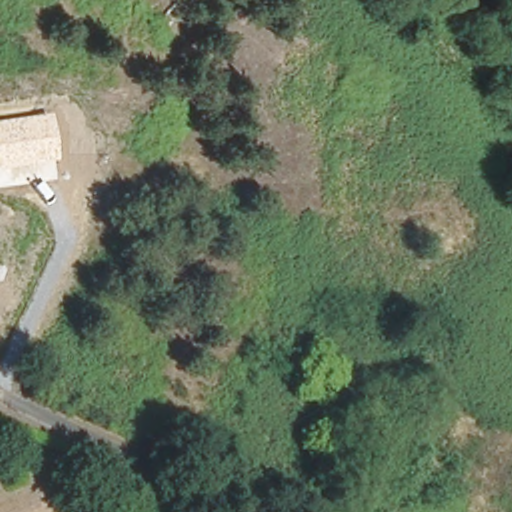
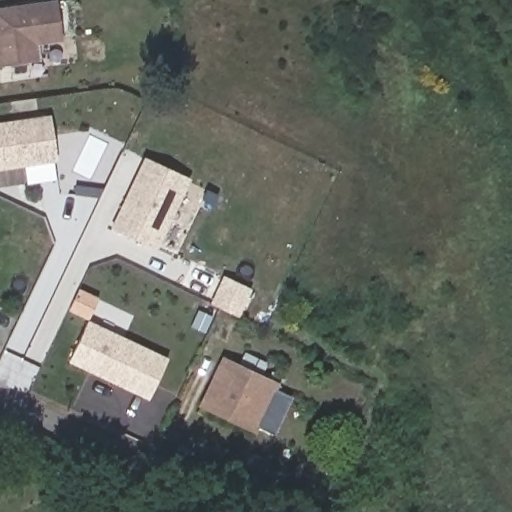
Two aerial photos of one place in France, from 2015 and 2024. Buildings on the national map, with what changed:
new [(0,7),(52,0),(56,0),(61,40),(35,44),(38,61),(0,66),(0,7)]
unchanged [(0,170),(0,122),(51,115),(56,162),(0,170)]
new [(110,227),(143,157),(190,179),(156,249),(110,227)]
new [(238,317),(209,303),(222,275),(251,288),(238,317)]
new [(147,400),(68,362),(88,320),(166,357),(147,400)]
new [(255,435),(197,407),(221,356),(280,382),(255,435)]

